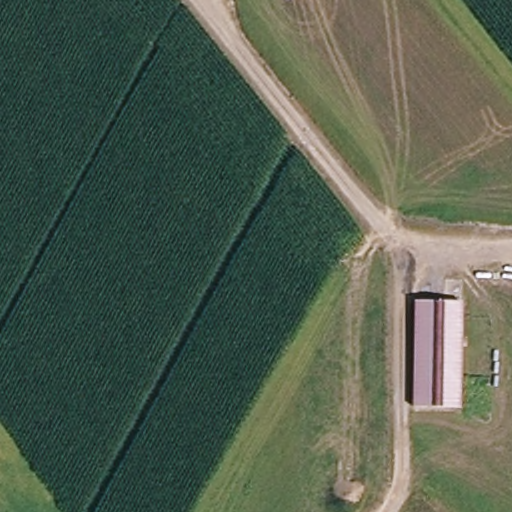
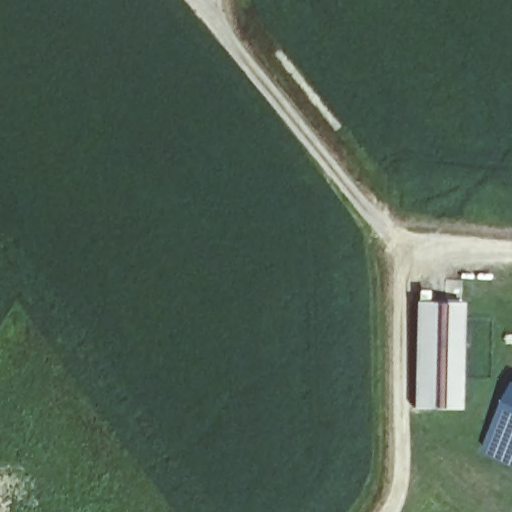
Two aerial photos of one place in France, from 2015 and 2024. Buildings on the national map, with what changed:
unchanged [(464,304),(463,406),(415,406),(416,303),(464,304)]
new [(486,450),(512,397),(512,463),(486,450)]

